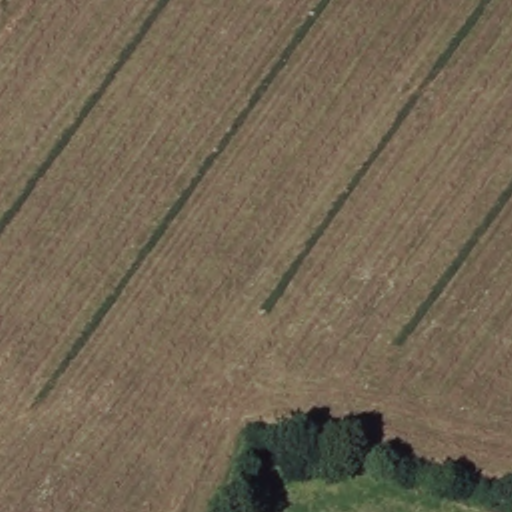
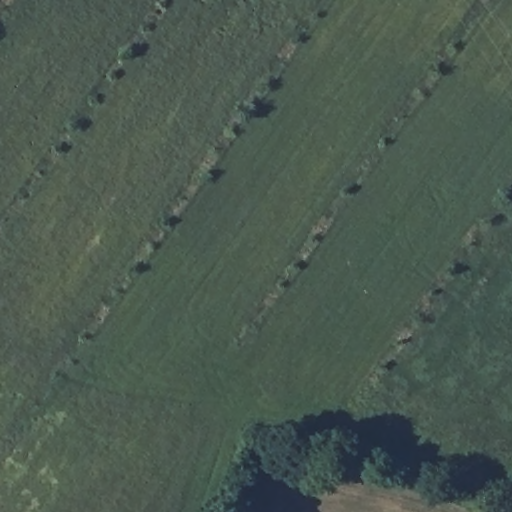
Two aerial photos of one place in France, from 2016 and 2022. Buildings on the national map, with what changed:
[]

